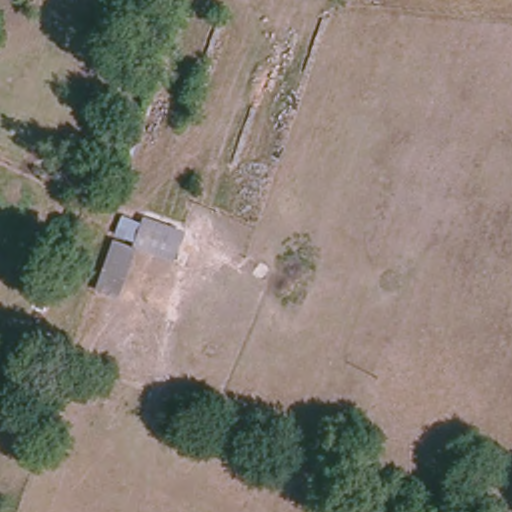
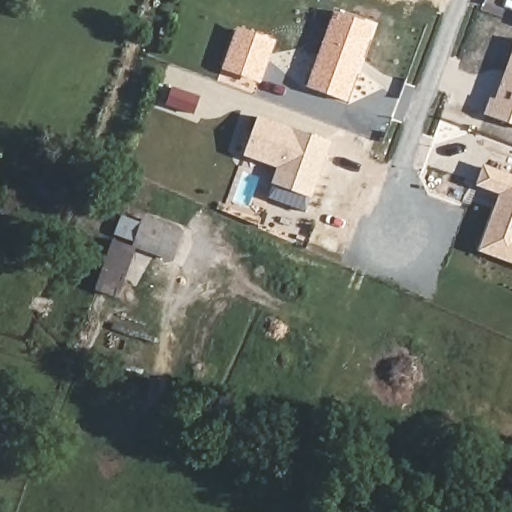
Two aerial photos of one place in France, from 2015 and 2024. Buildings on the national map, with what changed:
new [(306,87),(334,12),(376,26),(348,102),(306,87)]
new [(221,69),(236,27),(276,40),(261,83),(221,69)]
new [(495,98),(512,52),(512,125),(483,115),(490,97),(495,98)]
new [(258,115),(331,142),(311,198),(272,184),(276,168),(244,156),(258,115)]
new [(475,185),(483,164),(512,175),(512,263),(478,251),(499,194),(475,185)]
unchanged [(98,292),(116,241),(134,246),(144,218),(183,232),(175,259),(138,250),(122,300),(98,292)]

